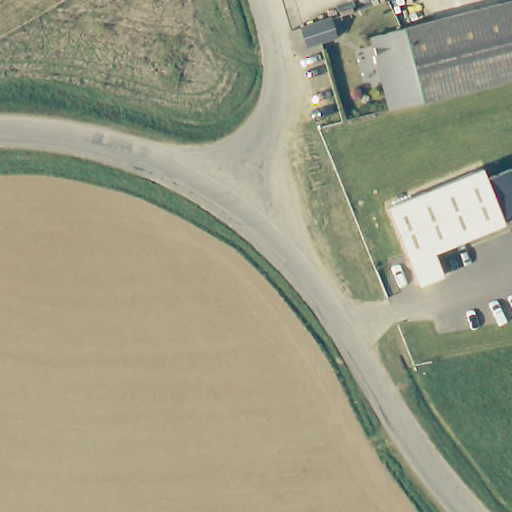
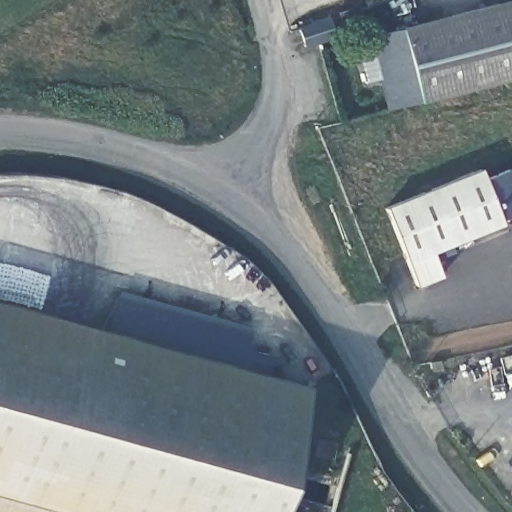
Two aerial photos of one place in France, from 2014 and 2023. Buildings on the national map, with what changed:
unchanged [(512,8),(512,83),(399,113),(380,42),(512,8)]
unchanged [(486,174),(489,181),(512,172),(512,218),(505,221),(507,226),(437,255),(447,278),(422,289),(391,213),(486,174)]
new [(97,328),(119,289),(249,326),(250,348),(250,349),(251,349),(273,355),(268,375),(310,387),(274,512),(0,512),(0,301),(97,328)]
new [(512,428),(511,428),(507,403),(487,407),(484,388),(512,383),(512,428)]

